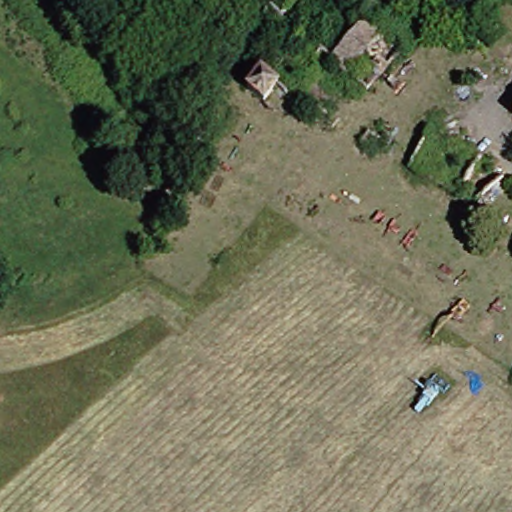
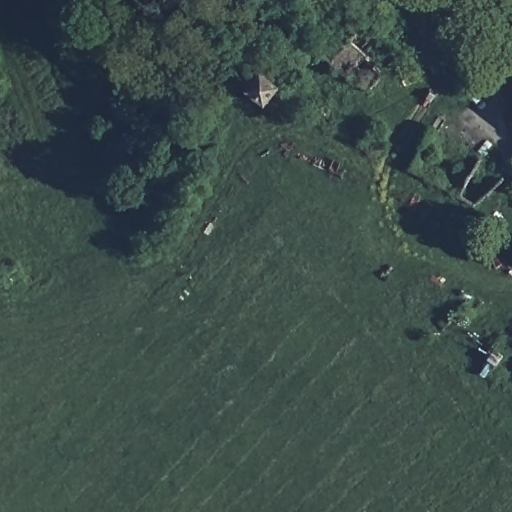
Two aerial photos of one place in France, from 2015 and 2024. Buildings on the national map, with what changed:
unchanged [(341,64),(379,25),(413,58),(375,97),(341,64)]
unchanged [(260,68),(268,67),(271,67),(278,71),(284,81),(284,89),(280,96),(273,104),(265,103),(257,101),(251,92),(248,86),(260,68)]
unchanged [(512,123),(512,127),(510,125),(512,123)]

